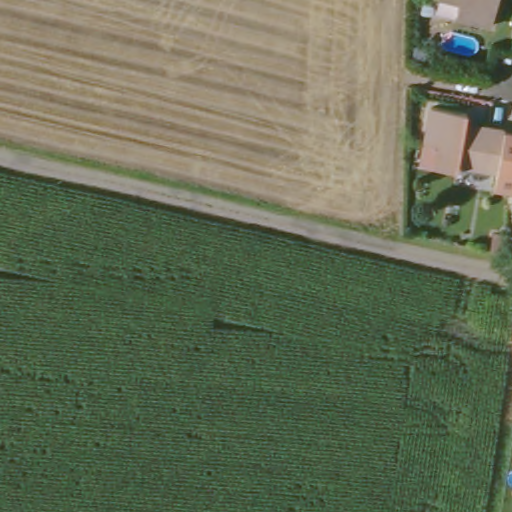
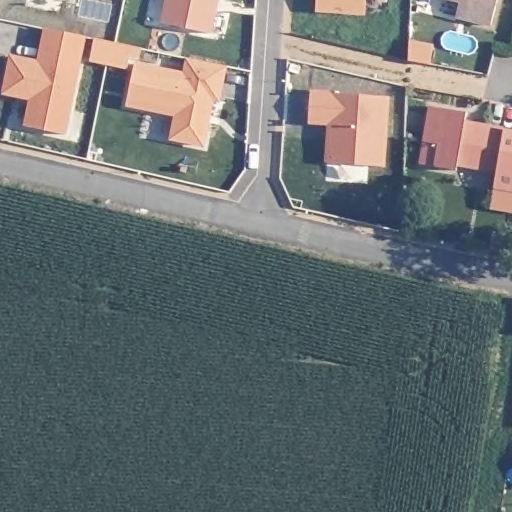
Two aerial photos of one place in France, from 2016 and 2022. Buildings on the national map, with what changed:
new [(214,34),(161,23),(165,0),(220,0),(214,34)]
new [(366,16),(316,12),(316,0),(366,0),(366,16)]
unchanged [(490,26),(457,19),(460,3),(445,0),(496,0),(490,26)]
new [(45,28),(87,37),(67,135),(23,126),(29,100),(2,94),(10,55),(38,60),(45,28)]
new [(136,62),(184,72),(186,59),(228,67),(221,102),(214,101),(205,147),(170,140),(175,117),(127,107),(136,62)]
new [(332,91),(332,94),(390,97),(385,167),(326,163),(329,124),(310,124),(312,90),(332,91)]
unchanged [(434,112),(469,117),(467,127),(512,132),(512,188),(502,187),(503,173),(463,167),(462,176),(441,173),(425,169),(429,144),(434,112)]

